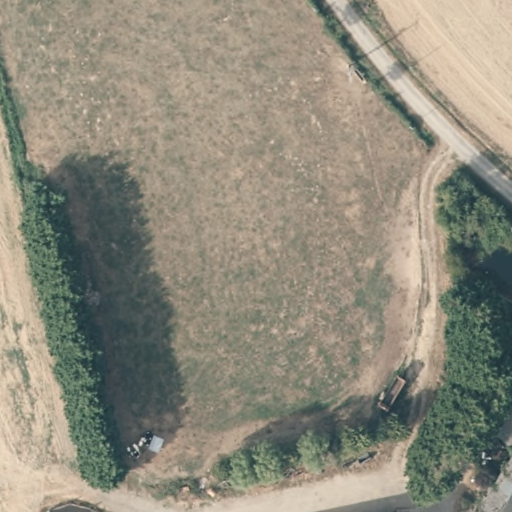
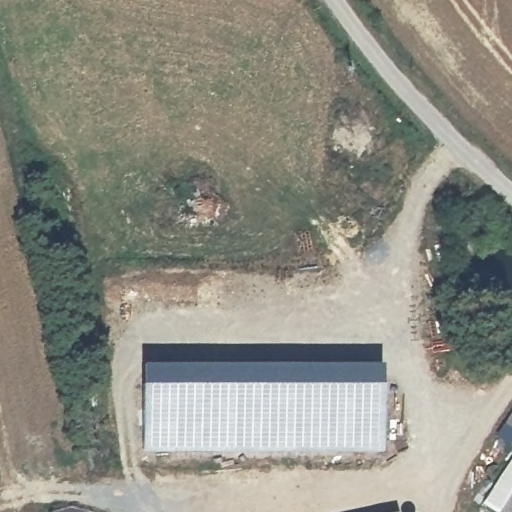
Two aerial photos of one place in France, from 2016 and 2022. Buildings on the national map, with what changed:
new [(382,449),(141,450),(142,361),(381,362),(382,449)]
unchanged [(498,425),(512,405),(512,434),(498,425)]
unchanged [(472,512),(512,450),(512,512),(472,512)]

